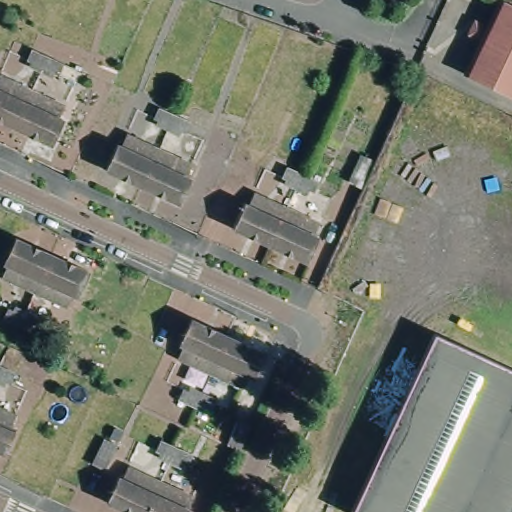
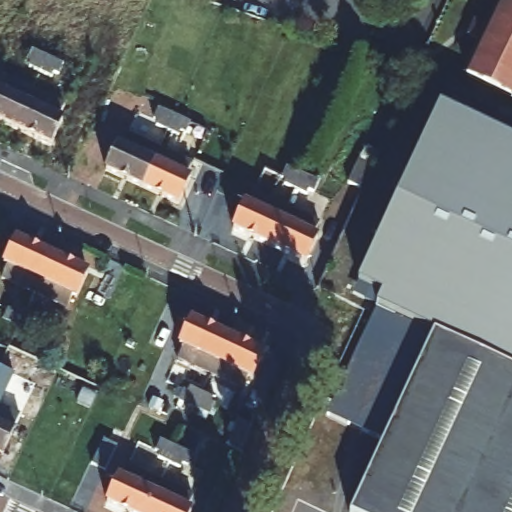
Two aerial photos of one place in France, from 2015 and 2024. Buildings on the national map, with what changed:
unchanged [(512,94),(469,73),(485,39),(473,33),(479,21),(491,27),(504,0),(506,0),(512,3),(512,94)]
unchanged [(59,81),(53,79),(51,83),(41,78),(30,73),(32,69),(27,67),(31,57),(47,64),(63,72),(59,81)]
unchanged [(0,123),(0,80),(33,95),(16,130),(0,123)]
unchanged [(65,110),(59,122),(63,124),(52,147),(16,130),(33,95),(65,110)]
new [(512,375),(433,339),(385,444),(325,417),(376,306),(352,295),(358,282),(439,107),(512,141),(512,375)]
unchanged [(188,136),(182,133),(180,137),(170,133),(160,127),(161,123),(155,120),(160,111),(176,119),(193,126),(188,136)]
unchanged [(109,167),(121,142),(125,143),(128,135),(162,150),(146,185),(109,167)]
unchanged [(195,165),(189,178),(191,179),(181,201),(146,185),(162,150),(195,165)]
unchanged [(315,194),(311,192),(308,197),(296,191),(286,186),(287,183),(283,181),(288,171),(303,178),(319,185),(315,194)]
unchanged [(343,198),(354,174),(367,181),(357,204),(343,198)]
unchanged [(237,227),(247,205),(250,206),(255,193),(288,209),(272,243),(237,227)]
unchanged [(321,225),(316,237),(320,238),(309,261),(272,243),(288,209),(321,225)]
unchanged [(2,277),(8,263),(6,261),(17,237),(53,253),(35,293),(2,277)]
unchanged [(89,270),(77,295),(75,294),(68,308),(35,293),(53,253),(89,270)]
unchanged [(36,327),(40,329),(36,338),(20,330),(4,323),(8,314),(12,316),(15,311),(26,316),(39,322),(36,327)]
unchanged [(177,358),(183,344),(182,344),(195,319),(230,335),(212,374),(177,358)]
unchanged [(266,352),(255,377),(252,375),(245,390),(212,374),(230,335),(266,352)]
unchanged [(512,512),(353,512),(433,339),(512,375),(512,512)]
unchanged [(12,388),(8,386),(5,391),(0,389),(0,372),(1,372),(16,379),(12,388)]
unchanged [(212,408),(217,411),(213,420),(196,413),(181,406),(186,396),(190,398),(192,393),(203,398),(215,403),(212,408)]
unchanged [(20,418),(13,432),(15,433),(4,457),(0,456),(0,409),(20,418)]
unchanged [(248,454),(233,448),(242,423),(255,427),(254,441),(248,454)]
unchanged [(105,440),(118,447),(105,471),(93,464),(105,440)]
unchanged [(190,471),(185,469),(184,472),(171,466),(160,461),(161,458),(157,456),(162,446),(177,453),(195,461),(190,471)]
unchanged [(120,476),(123,477),(128,465),(162,481),(148,512),(133,512),(108,500),(120,476)]
unchanged [(181,505),(192,510),(192,512),(148,512),(162,481),(187,492),(181,505)]

